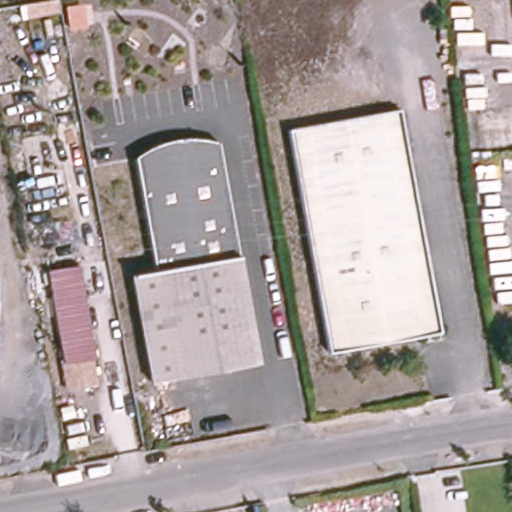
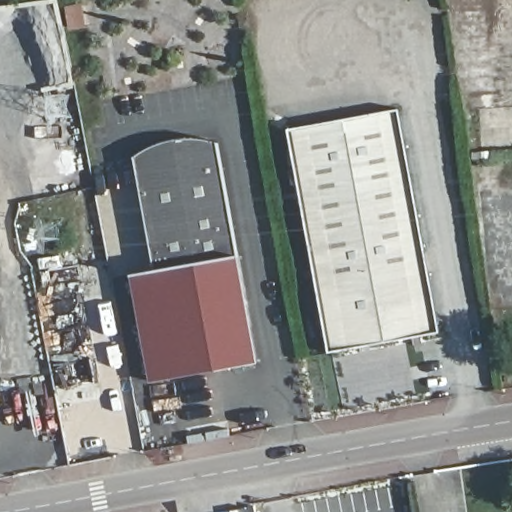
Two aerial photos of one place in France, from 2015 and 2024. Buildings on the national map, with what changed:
unchanged [(288,131),(397,110),(441,333),(332,355),(288,131)]
unchanged [(255,359),(143,381),(125,274),(156,269),(136,158),(150,147),(164,141),(178,137),(193,137),(208,138),(217,141),(237,258),(255,359)]
unchanged [(91,359),(86,360),(90,384),(64,388),(45,270),(76,265),(91,359)]

